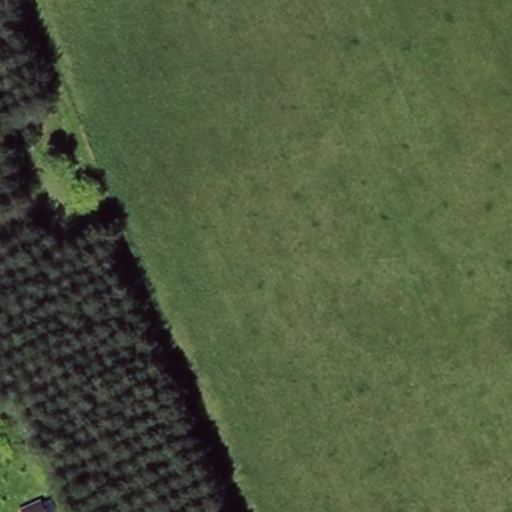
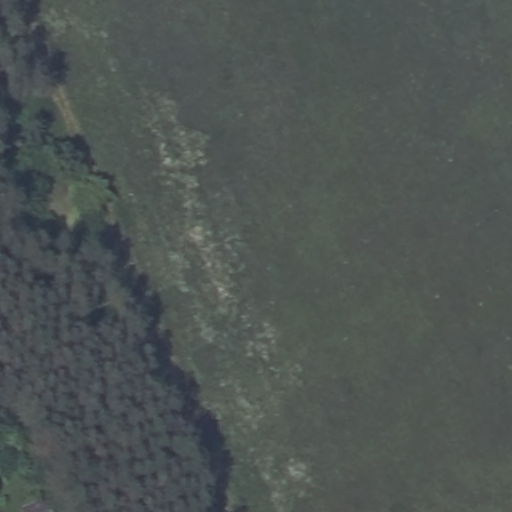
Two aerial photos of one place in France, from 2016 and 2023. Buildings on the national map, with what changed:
unchanged [(41,500),(46,512),(19,512),(18,511),(41,500)]

